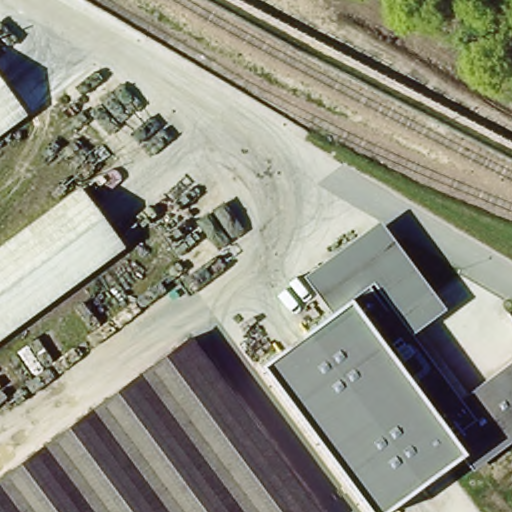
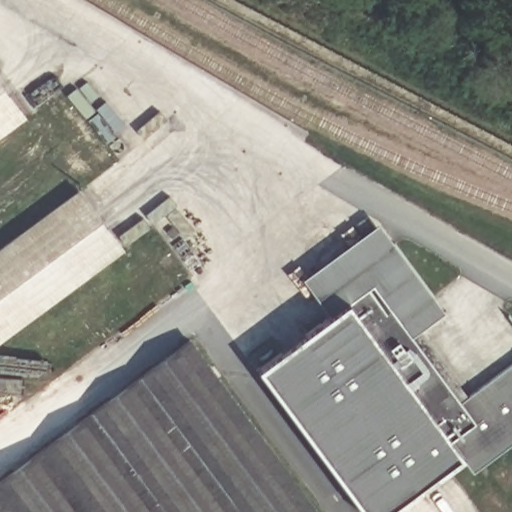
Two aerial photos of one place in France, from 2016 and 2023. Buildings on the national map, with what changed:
unchanged [(0,92),(17,115),(0,128),(0,92)]
unchanged [(0,254),(78,195),(125,257),(0,351),(0,254)]
unchanged [(462,401),(512,363),(512,443),(473,469),(462,454),(385,512),(370,512),(262,366),(327,315),(300,275),(375,221),(444,311),(411,332),(462,401)]
unchanged [(324,512),(0,512),(0,493),(196,343),(324,512)]

